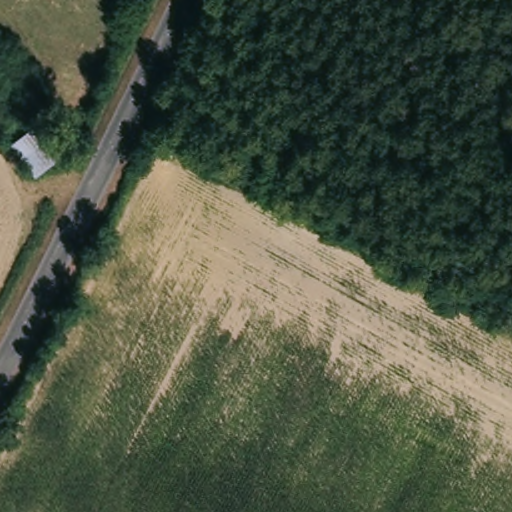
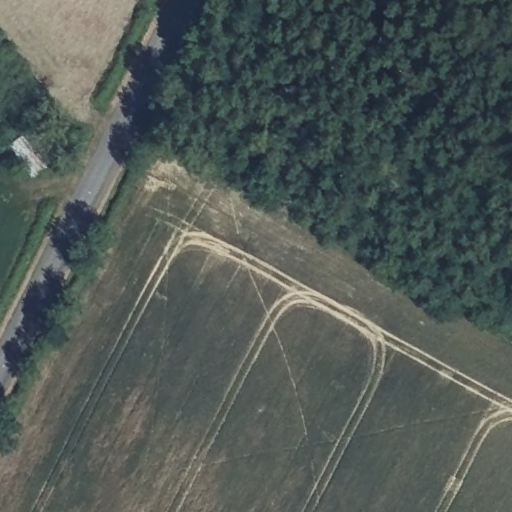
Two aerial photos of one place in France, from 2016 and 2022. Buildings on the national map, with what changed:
unchanged [(35,178),(13,147),(41,125),(61,159),(35,178)]

